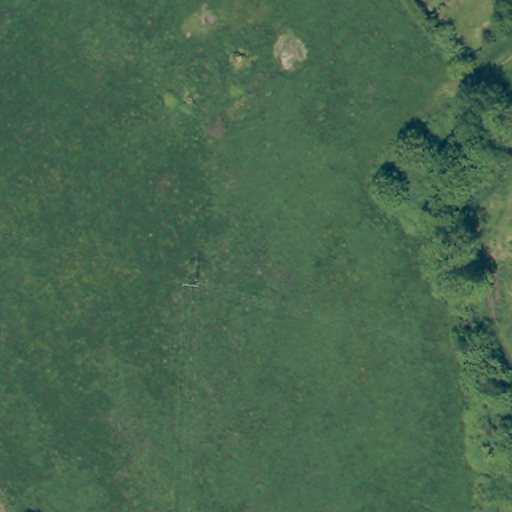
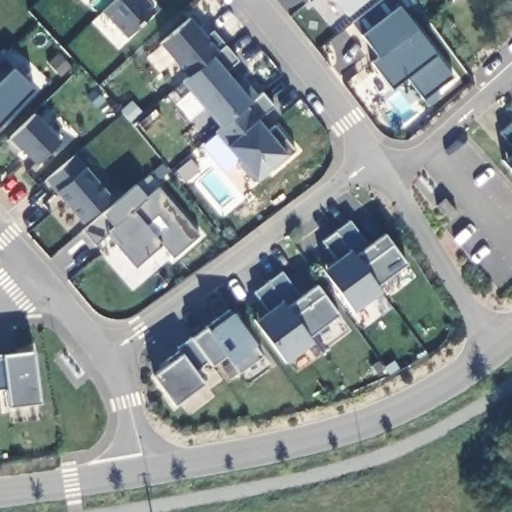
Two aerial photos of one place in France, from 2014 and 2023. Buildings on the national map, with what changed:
new [(114,0),(145,0),(155,12),(126,38),(101,12),(114,0)]
new [(399,6),(436,55),(454,79),(424,99),(407,76),(390,88),(371,62),(379,57),(362,34),(353,24),(384,0),(395,0),(399,6)]
new [(189,19),(205,39),(214,32),(239,62),(224,73),(232,82),(239,77),(258,98),(264,93),(275,106),(260,121),(269,132),(275,127),(297,152),(274,172),(270,169),(255,181),(226,146),(212,131),(219,125),(181,81),(187,75),(159,42),(189,19)]
new [(4,56),(14,68),(35,90),(19,107),(29,118),(34,112),(62,142),(36,165),(9,138),(0,129),(0,57),(2,59),(4,56)]
new [(501,134),(512,124),(512,145),(501,134)]
new [(503,162),(512,154),(512,172),(503,162)]
new [(75,155),(86,168),(114,203),(136,186),(147,200),(159,189),(199,236),(174,260),(162,246),(135,268),(107,237),(94,246),(82,231),(86,227),(84,224),(57,191),(45,180),(75,155)]
new [(445,199),(457,212),(449,220),(437,206),(445,199)]
new [(406,264),(377,286),(381,290),(354,311),(322,271),(337,260),(321,242),(349,222),(369,247),(385,234),(406,264)]
new [(308,337),(313,343),(285,362),(254,321),(267,311),(254,293),(282,272),(303,296),(316,286),(337,315),(308,337)]
new [(257,346),(263,357),(241,373),(231,363),(224,355),(213,366),(208,358),(193,371),(203,383),(175,405),(153,373),(181,354),(177,348),(192,338),(204,329),(230,311),(234,312),(257,346)]
new [(10,407),(8,387),(0,388),(0,355),(2,355),(34,351),(42,403),(10,407)]

